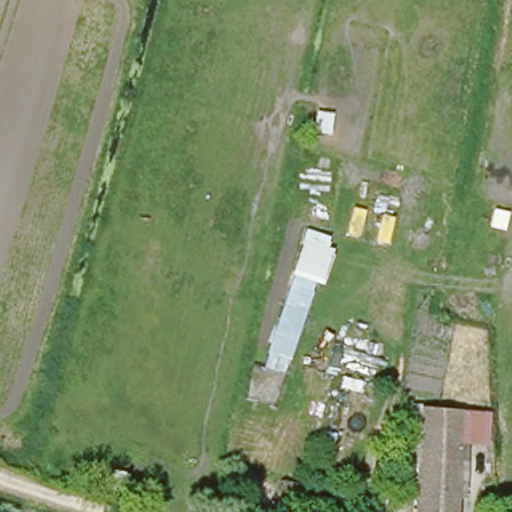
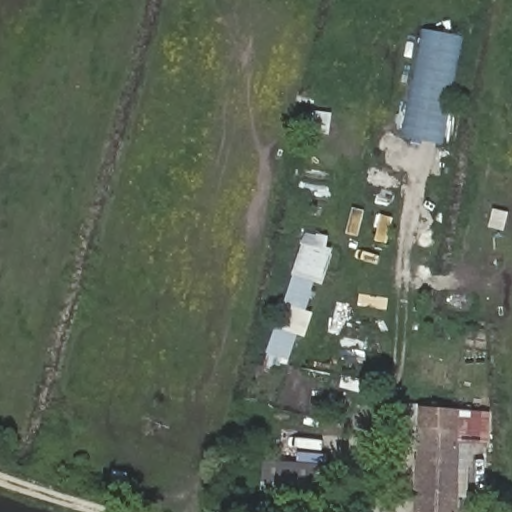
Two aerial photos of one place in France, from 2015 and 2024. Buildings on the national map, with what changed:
new [(423,32),(463,38),(442,144),(404,138),(423,32)]
unchanged [(325,248),(330,250),(324,271),(317,269),(288,359),(265,351),(295,262),(290,260),(296,240),(300,242),(305,229),(328,235),(325,248)]
unchanged [(490,447),(467,446),(463,512),(419,512),(422,429),(408,427),(409,415),(423,416),(423,413),(491,417),(490,447)]
unchanged [(304,510),(277,507),(280,488),(307,491),(304,510)]

